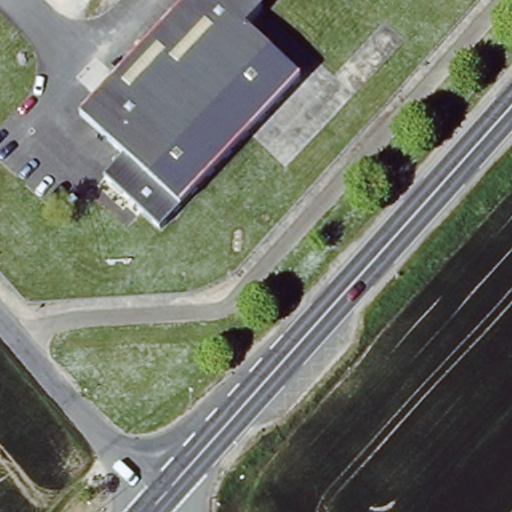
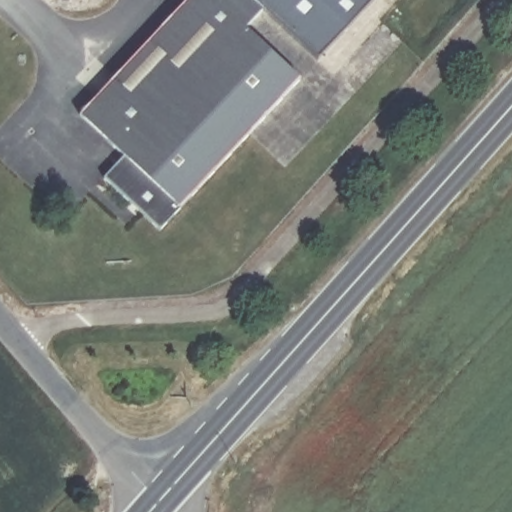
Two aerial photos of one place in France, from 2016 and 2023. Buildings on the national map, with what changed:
unchanged [(259,11),(243,29),(299,79),(161,233),(103,182),(125,158),(80,118),(187,0),(246,0),(259,11)]
new [(318,57),(264,6),(259,11),(246,0),(372,0),(318,57)]

